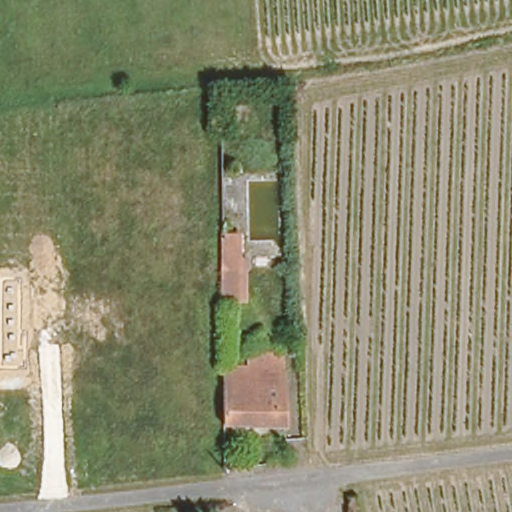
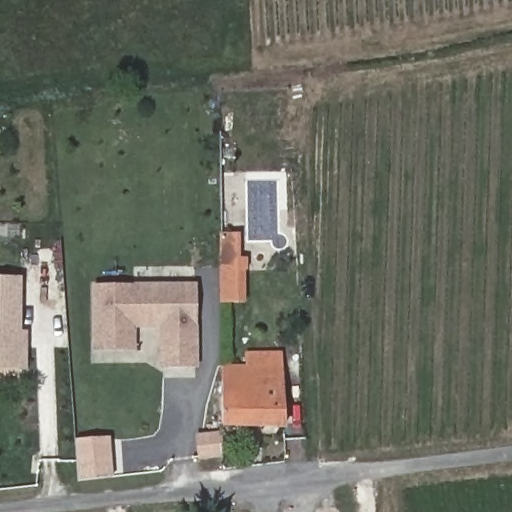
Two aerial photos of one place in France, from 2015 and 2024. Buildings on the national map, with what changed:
unchanged [(223,307),(222,262),(222,234),(234,235),(233,262),(233,306),(223,307)]
new [(0,370),(0,277),(23,278),(23,331),(29,332),(28,370),(0,370)]
new [(160,368),(160,330),(136,330),(136,352),(93,351),(93,282),(197,282),(199,367),(160,368)]
unchanged [(223,363),(245,363),(244,345),(283,345),(285,427),(223,428),(223,363)]
new [(197,458),(195,436),(219,433),(222,456),(197,458)]
new [(113,480),(77,482),(75,440),(110,437),(113,480)]

